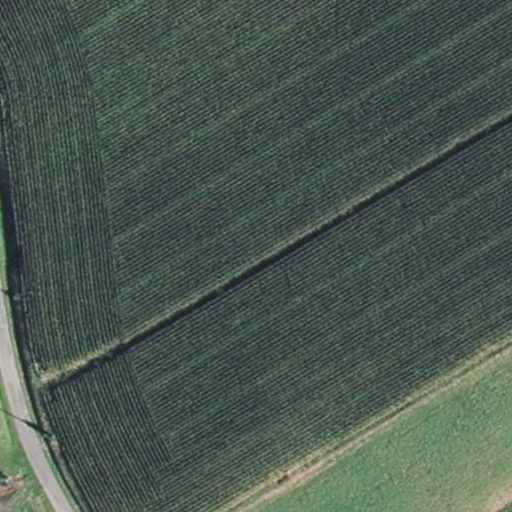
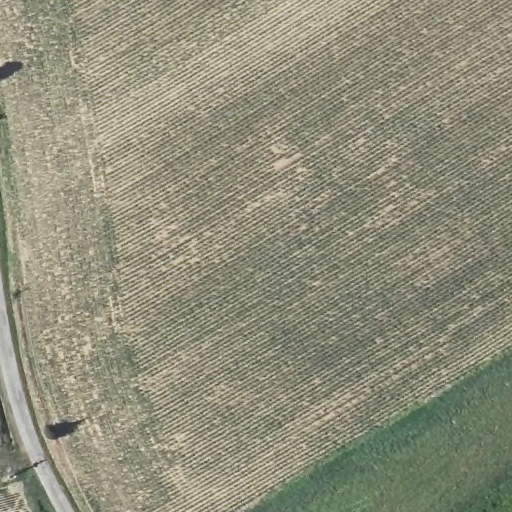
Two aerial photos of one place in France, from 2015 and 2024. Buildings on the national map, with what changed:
[]

